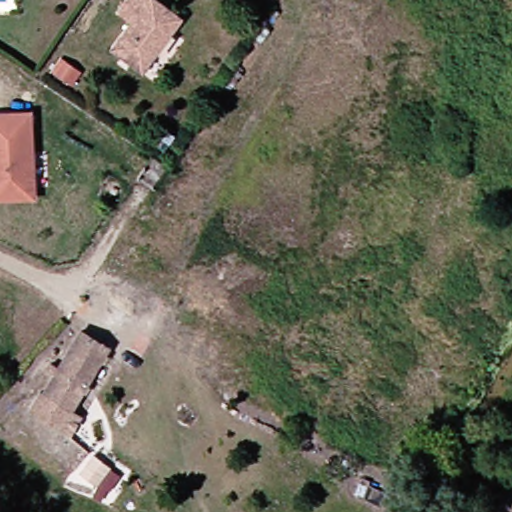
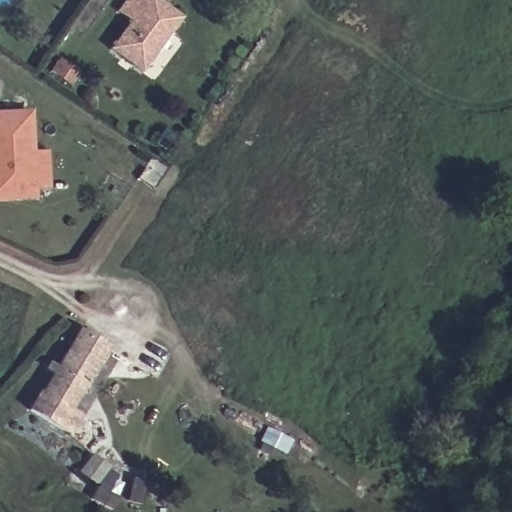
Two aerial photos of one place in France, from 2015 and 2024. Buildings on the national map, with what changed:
unchanged [(105,45),(126,17),(113,7),(118,0),(159,0),(177,14),(166,29),(151,49),(137,69),(105,45)]
unchanged [(72,86),(67,82),(57,75),(66,62),(76,70),(81,73),(72,86)]
unchanged [(0,198),(0,115),(30,114),(33,197),(0,198)]
unchanged [(61,403),(71,410),(59,432),(19,408),(31,388),(32,390),(45,368),(38,365),(41,358),(49,362),(71,327),(98,343),(61,403)]
unchanged [(94,482),(80,472),(93,457),(106,467),(94,482)]

